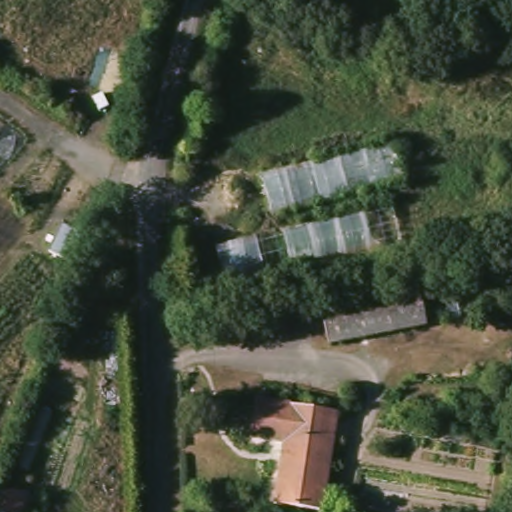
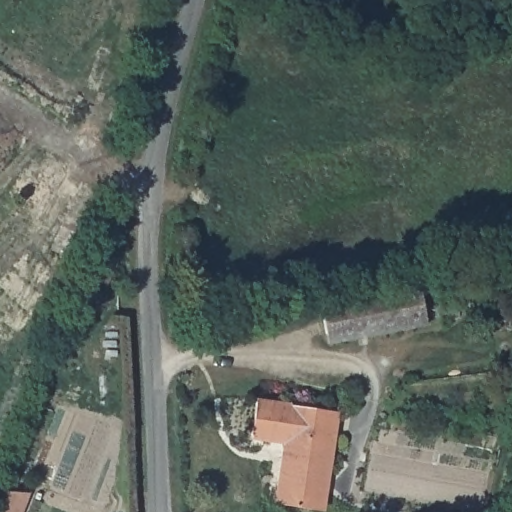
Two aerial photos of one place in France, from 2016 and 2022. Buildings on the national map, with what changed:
demolished [(275,214),(266,175),(396,145),(405,185),(275,214)]
demolished [(227,285),(221,248),(395,205),(404,247),(227,285)]
unchanged [(107,285),(89,276),(99,255),(117,263),(107,285)]
unchanged [(432,325),(334,344),(326,305),(424,286),(432,325)]
unchanged [(328,511),(281,504),(290,443),(256,438),(261,401),(342,413),(328,511)]
unchanged [(0,511),(0,492),(31,492),(23,512),(2,512),(0,511)]

